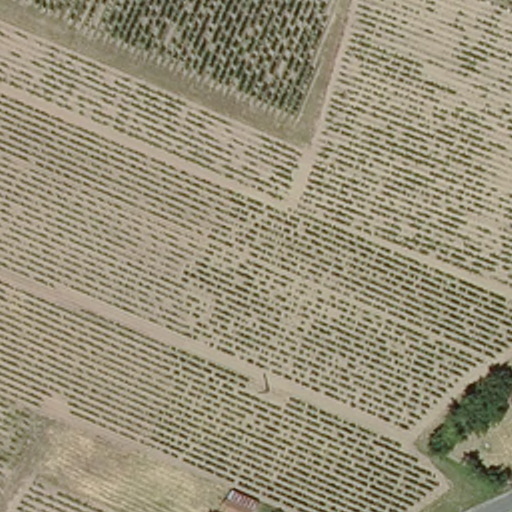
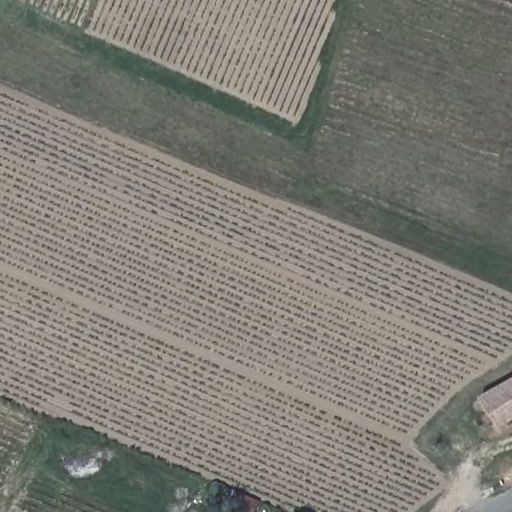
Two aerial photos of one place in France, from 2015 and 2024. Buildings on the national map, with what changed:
demolished [(512,377),(512,404),(502,383),(512,377)]
new [(512,423),(500,431),(479,398),(512,379),(512,423)]
unchanged [(244,512),(229,512),(216,506),(220,497),(245,508),(244,512)]

